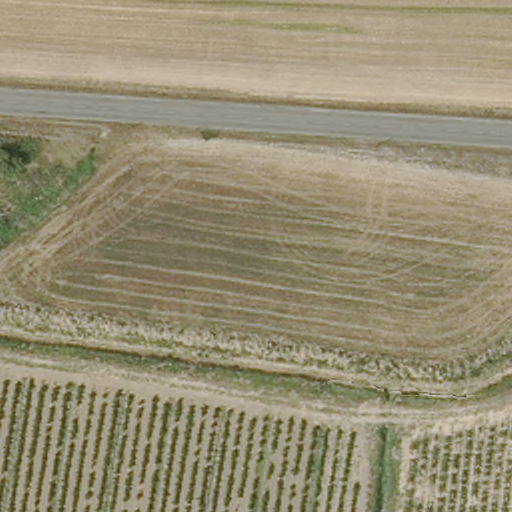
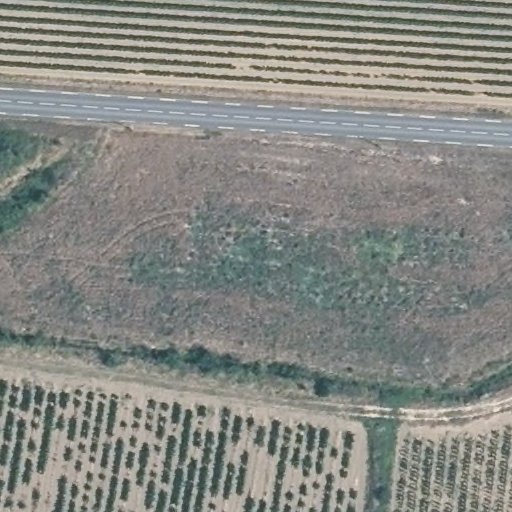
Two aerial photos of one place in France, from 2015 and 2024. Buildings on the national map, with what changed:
[]

